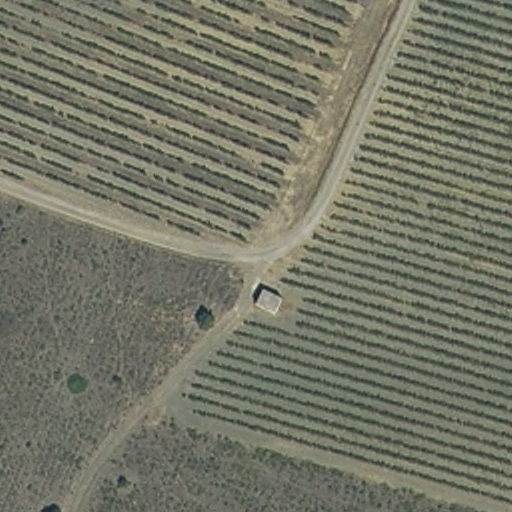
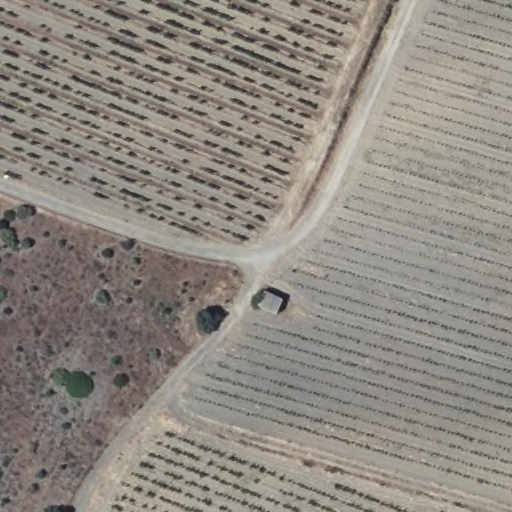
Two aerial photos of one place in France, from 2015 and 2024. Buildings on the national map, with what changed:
unchanged [(260,290),(280,298),(275,313),(255,305),(260,290)]

